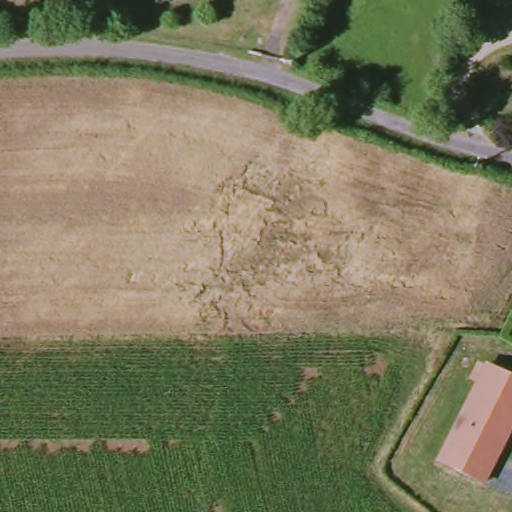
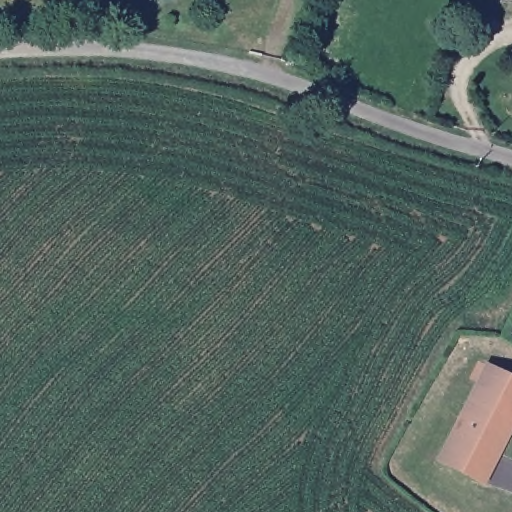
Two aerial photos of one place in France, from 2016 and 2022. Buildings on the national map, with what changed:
unchanged [(512,375),(512,436),(487,485),(437,458),(487,362),(512,375)]

